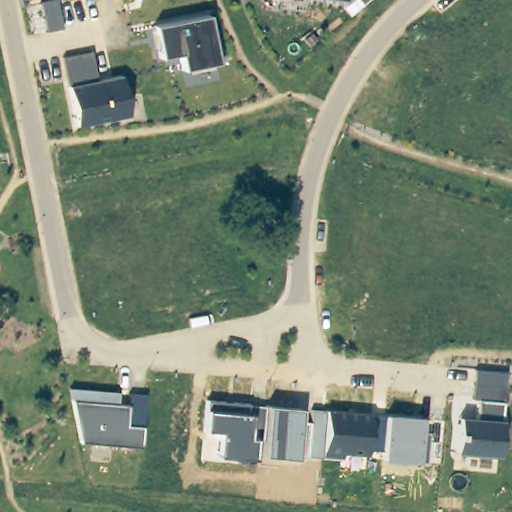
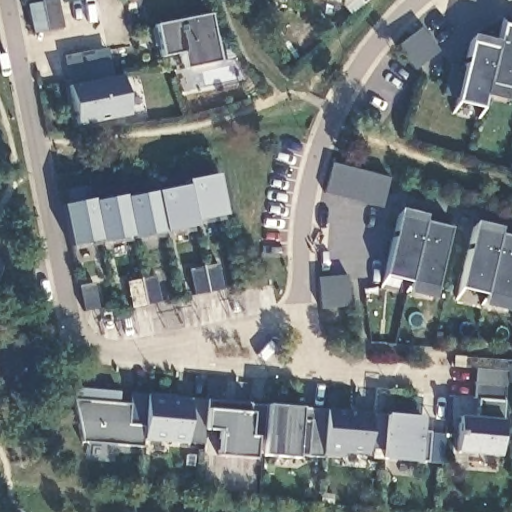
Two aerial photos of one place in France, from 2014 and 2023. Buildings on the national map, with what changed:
new [(58,0),(63,28),(48,31),(34,34),(28,5),(42,2),(53,0),(58,0)]
unchanged [(339,0),(366,0),(348,15),(339,0)]
unchanged [(206,16),(216,63),(183,69),(179,53),(159,57),(153,26),(206,16)]
new [(481,107),(456,102),(457,98),(443,95),(450,65),(464,67),(470,35),(499,42),(502,26),(512,27),(512,97),(511,102),(484,95),(481,107)]
unchanged [(67,86),(61,57),(91,51),(97,80),(120,75),(129,116),(74,126),(67,86)]
new [(332,162),(390,177),(381,209),(323,194),(332,162)]
new [(92,198),(93,202),(124,195),(125,197),(155,191),(186,185),(185,180),(218,173),(225,216),(194,222),(195,227),(132,239),(132,236),(101,244),(100,240),(70,247),(61,205),(92,198)]
new [(385,276),(400,210),(426,215),(424,222),(450,228),(436,287),(433,298),(408,292),(410,282),(385,276)]
new [(460,287),(475,221),(501,227),(499,234),(512,237),(512,292),(510,300),(508,311),(483,305),(485,294),(460,287)]
new [(155,277),(160,302),(145,306),(130,308),(125,283),(140,280),(155,277)]
unchanged [(458,415),(477,417),(478,400),(472,399),(476,369),(506,372),(503,402),(502,421),(498,456),(453,452),(458,415)]
unchanged [(119,392),(117,403),(127,404),(129,393),(146,395),(143,427),(142,447),(80,443),(69,388),(119,392)]
unchanged [(207,411),(204,430),(204,443),(143,440),(143,427),(146,395),(173,397),(172,399),(208,401),(207,411)]
unchanged [(207,411),(208,401),(266,406),(300,408),(299,422),(309,422),(311,409),(326,410),(370,413),(384,415),(422,418),(421,432),(428,432),(425,462),(417,462),(381,460),(382,449),(367,447),(367,454),(342,453),(341,457),(320,457),(296,455),(296,458),(262,455),(251,453),(250,459),(216,456),(218,431),(204,430),(207,411)]

